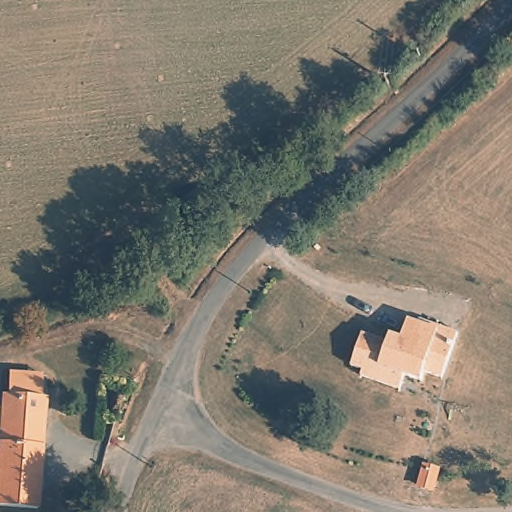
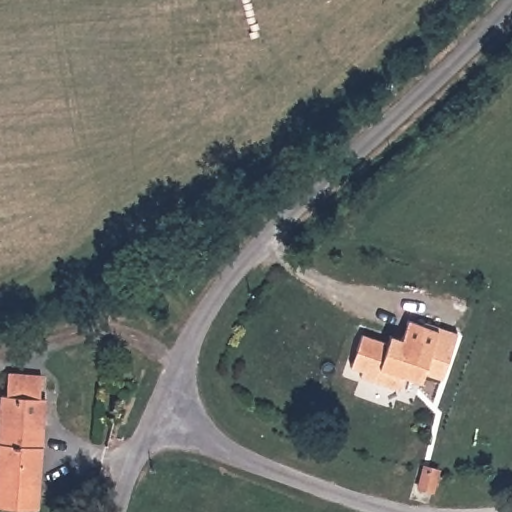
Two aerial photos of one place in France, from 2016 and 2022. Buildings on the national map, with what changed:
unchanged [(398,347),(407,319),(423,324),(424,322),(457,333),(442,378),(423,372),(421,381),(404,375),(400,389),(361,376),(362,370),(351,366),(362,334),(398,347)]
unchanged [(0,506),(0,409),(2,394),(7,394),(8,372),(42,374),(40,398),(45,398),(37,509),(0,506)]
unchanged [(436,477),(432,490),(418,487),(422,474),(423,471),(437,474),(436,477)]

